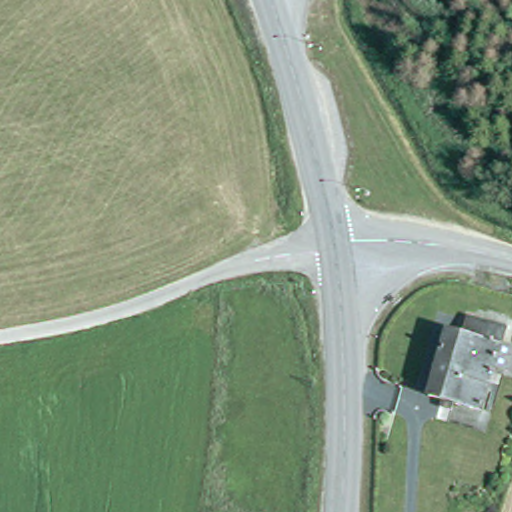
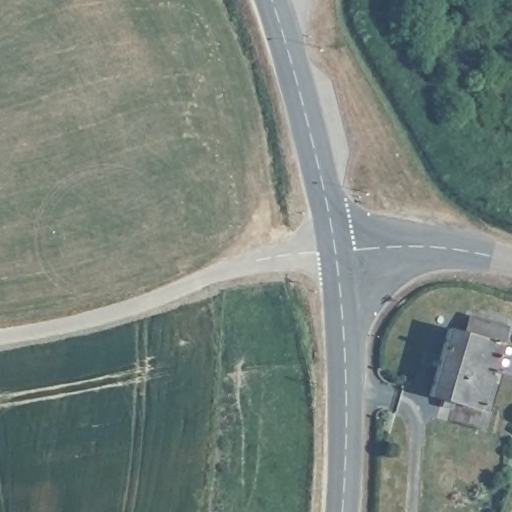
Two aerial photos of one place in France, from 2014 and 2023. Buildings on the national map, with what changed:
unchanged [(479,315),(512,324),(512,331),(510,341),(512,342),(512,365),(505,363),(492,411),(444,399),(462,329),(474,332),(479,315)]

